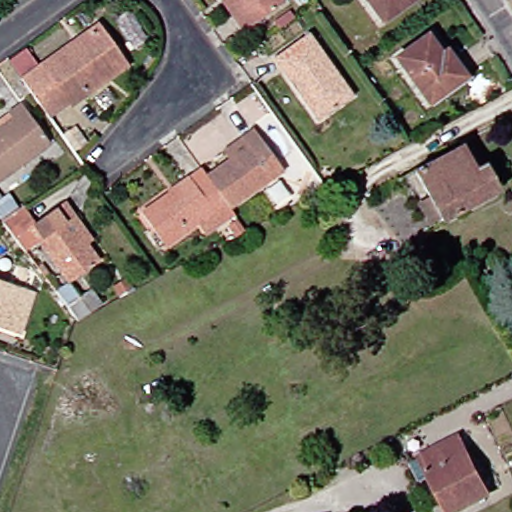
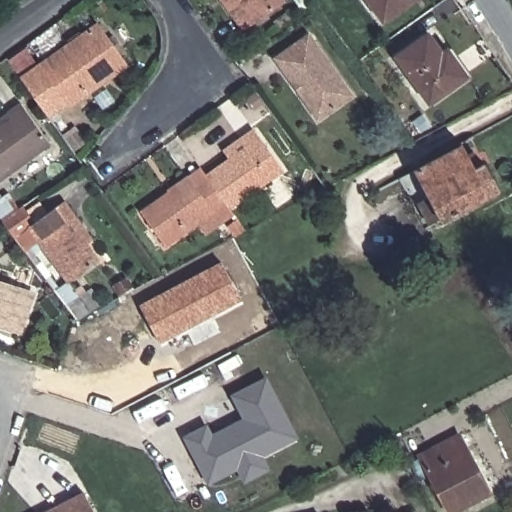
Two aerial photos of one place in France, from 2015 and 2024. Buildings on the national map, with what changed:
unchanged [(285,0),(245,27),(235,13),(226,0),(285,0)]
unchanged [(366,0),(405,0),(378,19),(366,0)]
unchanged [(28,75),(99,24),(127,63),(109,76),(85,93),(71,103),(69,100),(53,112),(42,96),(28,75)]
unchanged [(320,119),(275,57),(309,32),(355,95),(320,119)]
unchanged [(468,74),(468,77),(467,79),(465,81),(463,82),(430,106),(426,101),(393,55),(425,33),(428,36),(432,33),(443,48),(448,45),(468,74)]
unchanged [(0,182),(0,131),(17,119),(13,113),(25,105),(53,145),(0,182)]
unchanged [(235,163),(229,155),(245,144),(258,135),(285,173),(232,211),(227,205),(211,180),(235,163)]
unchanged [(415,204),(430,196),(416,170),(463,144),(477,168),(485,164),(497,184),(497,187),(495,190),(493,192),(491,194),(454,214),(444,220),(442,216),(427,224),(415,204)]
unchanged [(144,215),(173,194),(171,192),(191,179),(196,185),(199,190),(211,180),(227,205),(166,247),(144,215)]
unchanged [(66,200),(76,214),(92,238),(88,242),(100,260),(72,280),(43,238),(25,250),(4,220),(24,206),(36,222),(66,200)]
new [(138,304),(221,260),(242,300),(160,343),(138,304)]
unchanged [(119,277),(125,289),(111,296),(105,284),(119,277)]
unchanged [(35,293),(21,332),(0,325),(0,281),(35,293)]
unchanged [(86,293),(94,306),(86,312),(73,319),(63,305),(54,292),(68,283),(76,296),(77,298),(86,293)]
new [(182,436),(207,423),(212,433),(242,418),(230,395),(267,376),(298,438),(263,457),(270,470),(243,483),(236,471),(208,484),(182,436)]
unchanged [(446,512),(418,457),(455,437),(464,453),(475,476),(484,495),(453,512),(446,512)]
new [(93,512),(52,512),(85,495),(93,512)]
unchanged [(423,512),(424,511),(425,512),(423,512)]

